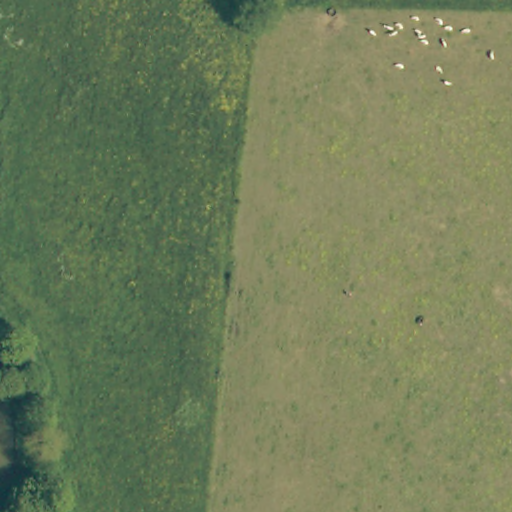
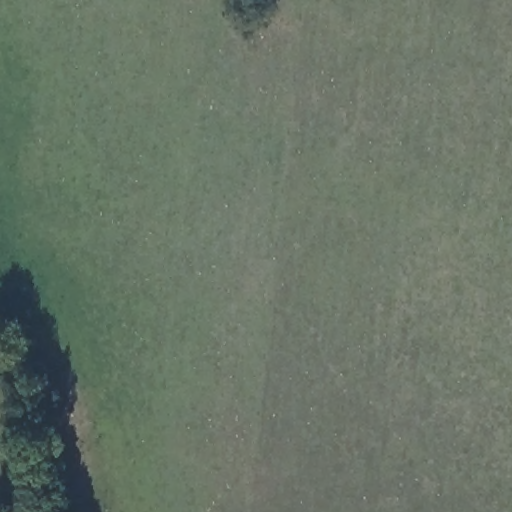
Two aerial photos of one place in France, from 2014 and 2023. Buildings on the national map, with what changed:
[]

